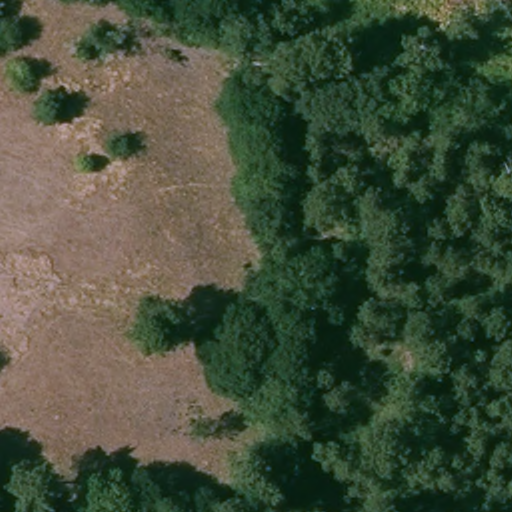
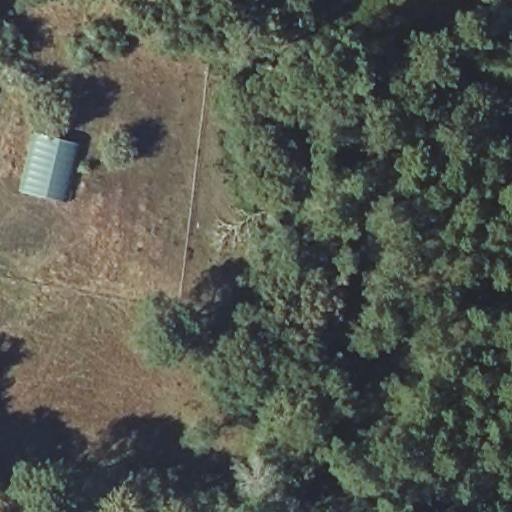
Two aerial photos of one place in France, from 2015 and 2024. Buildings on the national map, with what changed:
new [(59,200),(23,191),(37,134),(73,143),(59,200)]

